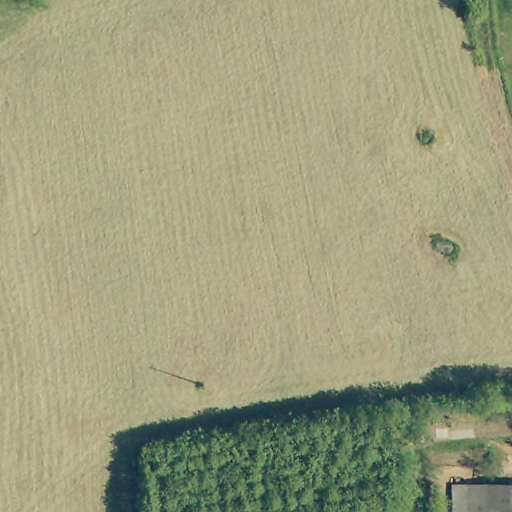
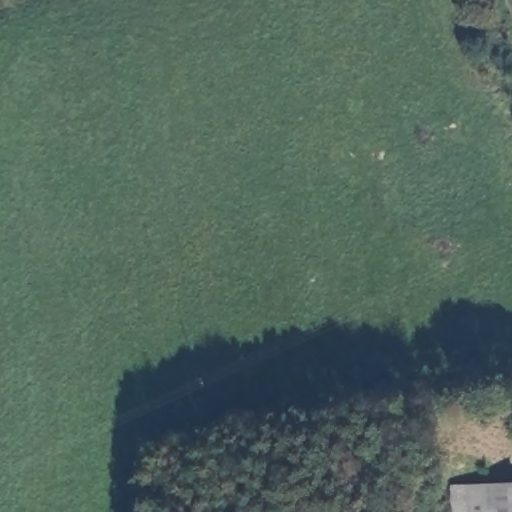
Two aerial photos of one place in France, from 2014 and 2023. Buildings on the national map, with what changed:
unchanged [(459,490),(512,487),(512,512),(445,512),(444,490),(459,490)]

